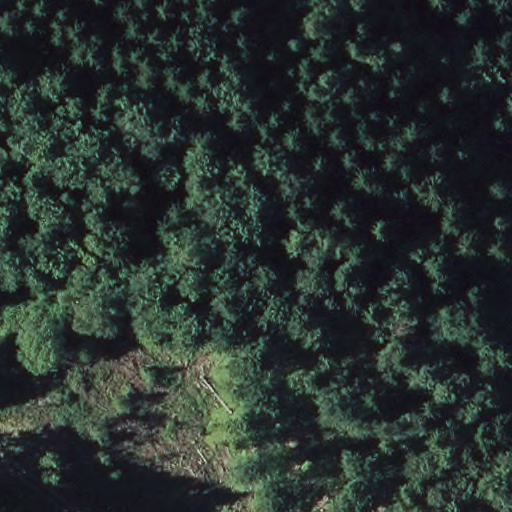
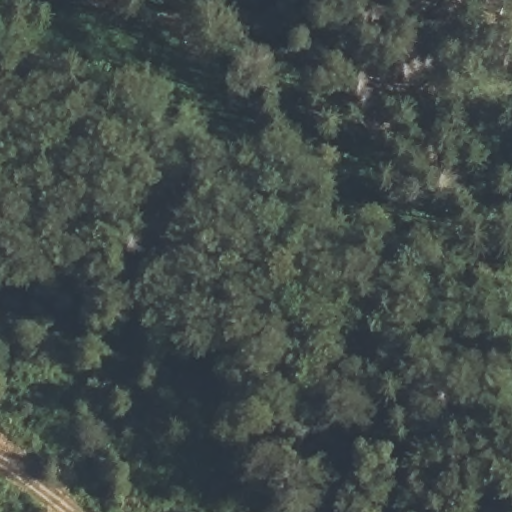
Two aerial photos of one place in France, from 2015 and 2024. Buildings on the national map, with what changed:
[]

